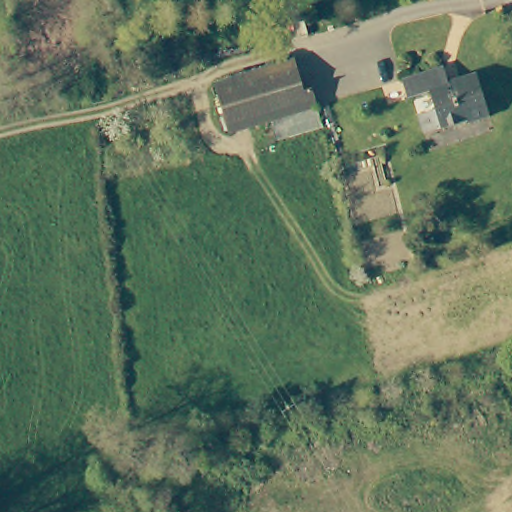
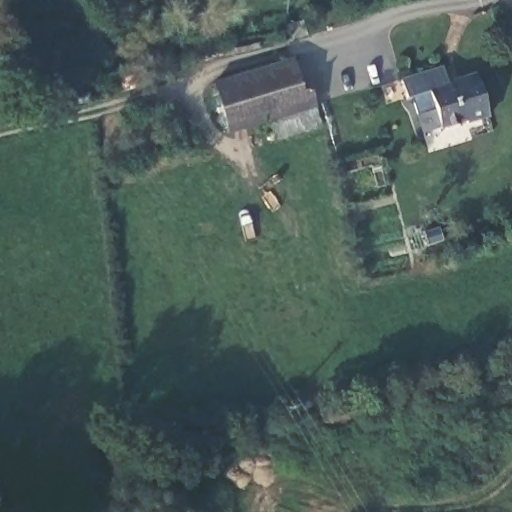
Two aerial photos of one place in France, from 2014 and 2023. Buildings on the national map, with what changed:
unchanged [(267,113),(229,127),(210,79),(289,50),(300,79),(309,76),(316,94),(267,113)]
unchanged [(466,109),(425,126),(419,108),(433,103),(426,83),(405,90),(399,74),(438,59),(444,74),(470,64),(486,106),(468,114),(466,109)]
unchanged [(316,94),(324,115),(275,133),(267,113),(316,94)]

